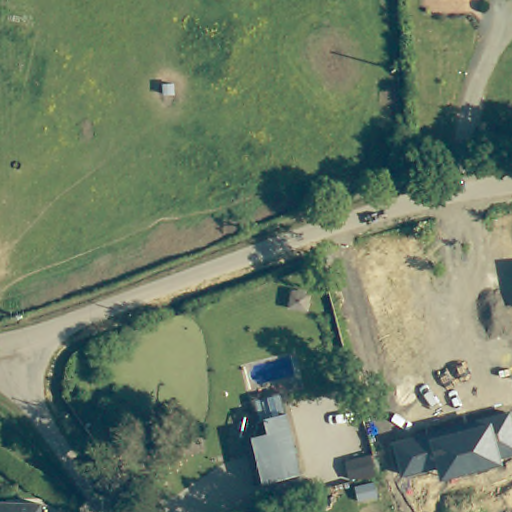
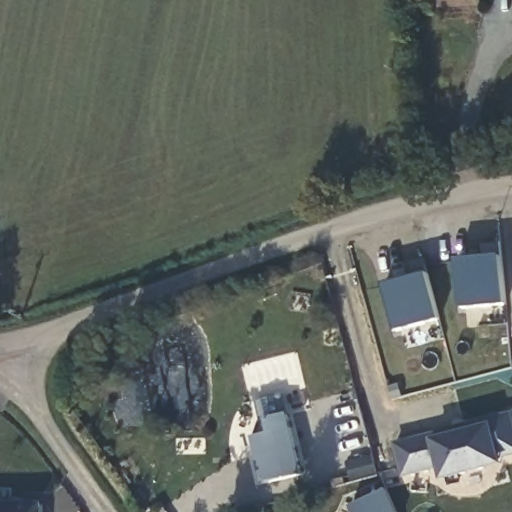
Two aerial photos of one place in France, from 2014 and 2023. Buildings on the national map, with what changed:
new [(462,310),(458,259),(482,257),(481,244),(500,242),(502,256),(506,305),(462,310)]
new [(440,320),(399,331),(384,285),(427,273),(440,320)]
unchanged [(507,467),(441,481),(438,469),(402,478),(393,440),(512,410),(512,458),(505,460),(507,467)]
unchanged [(302,479),(264,489),(260,469),(267,467),(265,457),(258,459),(257,458),(256,452),(256,449),(256,446),(256,443),(256,440),(257,438),(258,435),(259,432),(260,429),(261,427),(263,424),(289,417),(302,479)]
unchanged [(376,476),(352,482),(348,465),(372,459),(376,476)]
unchanged [(397,512),(353,512),(350,506),(387,490),(397,512)]
unchanged [(42,504),(41,512),(0,512),(0,503),(42,504)]

